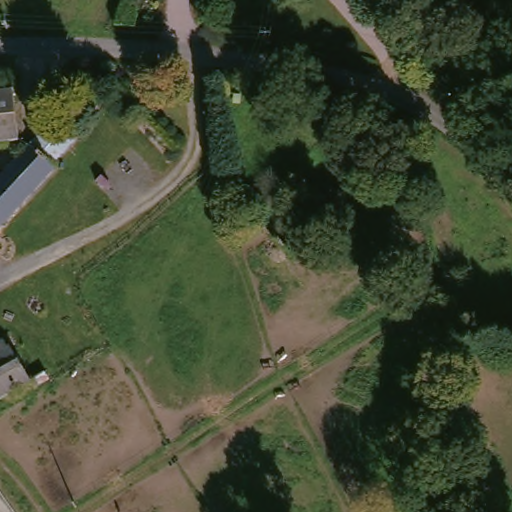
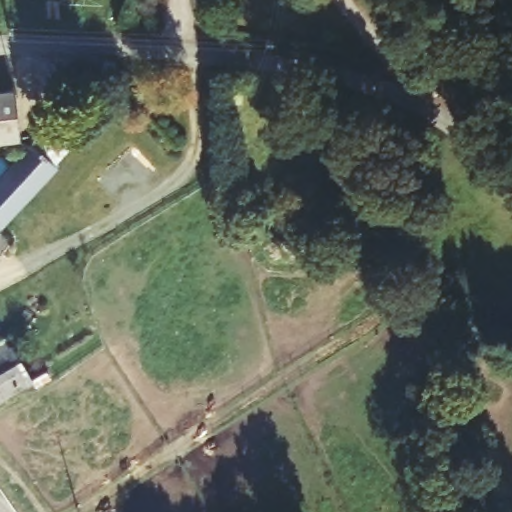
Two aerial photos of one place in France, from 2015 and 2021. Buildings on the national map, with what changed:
unchanged [(430,11),(425,0),(445,0),(446,4),(430,11)]
unchanged [(19,86),(24,135),(0,138),(0,88),(19,86)]
unchanged [(91,125),(82,135),(59,160),(36,140),(70,105),(91,125)]
unchanged [(59,160),(61,163),(0,228),(0,179),(36,140),(59,160)]
unchanged [(19,345),(37,385),(0,406),(0,352),(19,345)]

